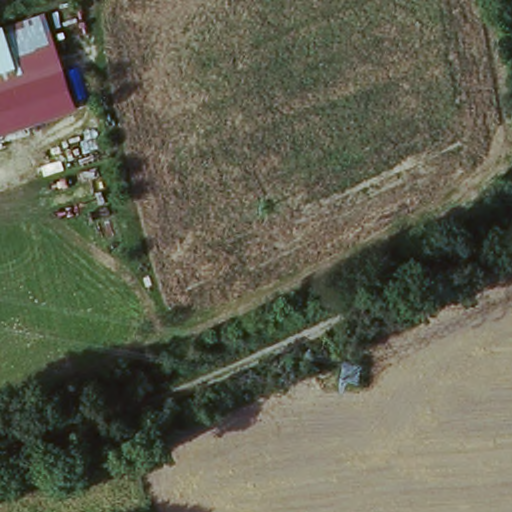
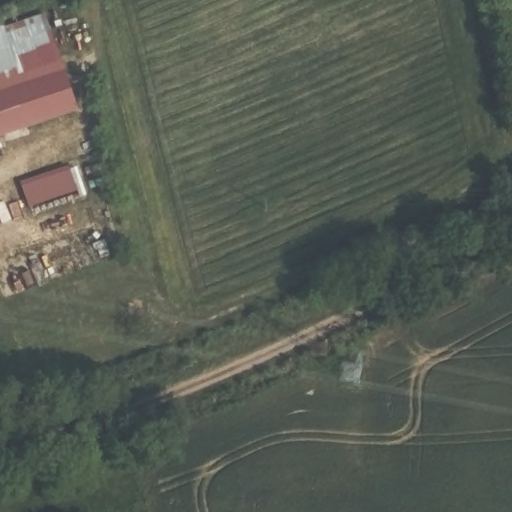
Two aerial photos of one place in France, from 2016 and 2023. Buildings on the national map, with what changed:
unchanged [(76,107),(0,132),(0,73),(14,69),(40,60),(25,20),(45,12),(76,107)]
unchanged [(3,25),(25,20),(40,60),(14,69),(0,73),(0,26),(3,25)]
new [(76,164),(87,197),(80,199),(77,191),(30,209),(21,184),(76,164)]

